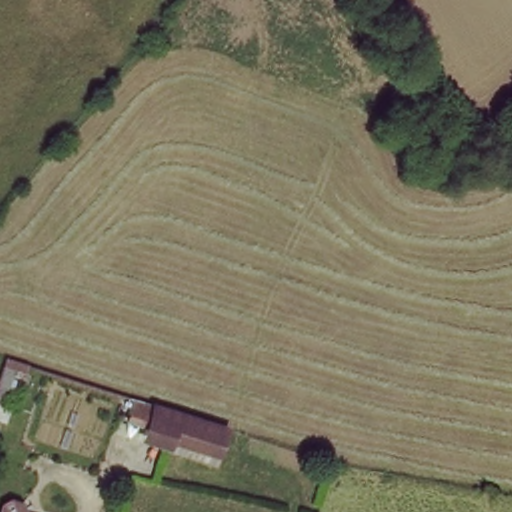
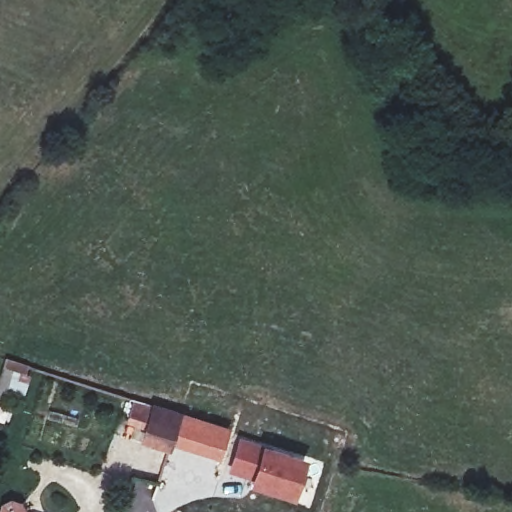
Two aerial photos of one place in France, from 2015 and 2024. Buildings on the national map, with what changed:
unchanged [(165,436),(138,428),(149,399),(223,422),(217,440),(213,451),(165,436)]
new [(292,500),(249,487),(251,480),(227,473),(238,436),(262,443),(306,458),(292,500)]
unchanged [(0,499),(23,506),(21,512),(0,512),(0,499)]

